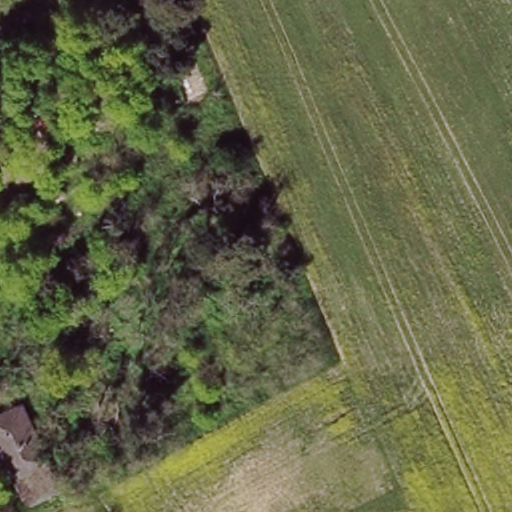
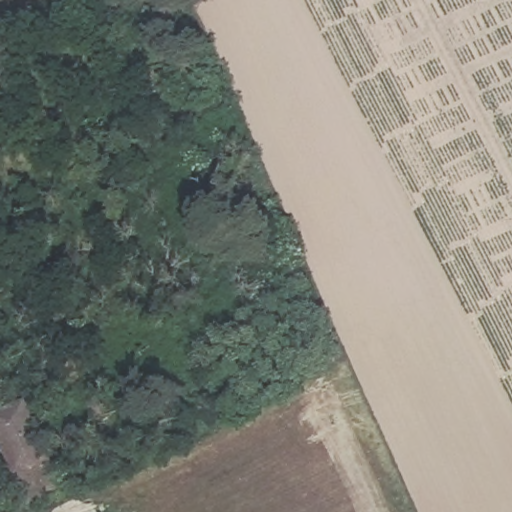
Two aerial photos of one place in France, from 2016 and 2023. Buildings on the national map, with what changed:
unchanged [(23,483),(0,434),(0,425),(31,410),(58,466),(23,483)]

